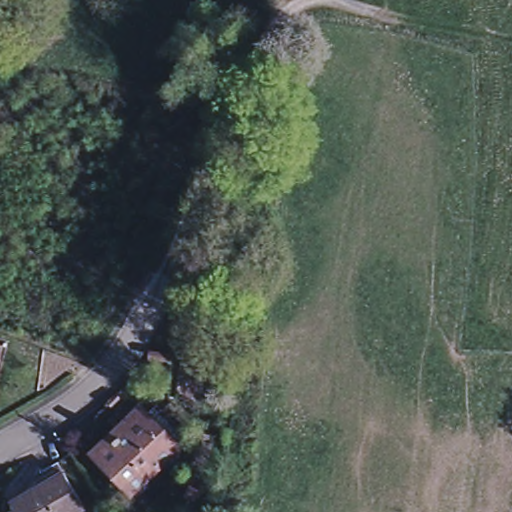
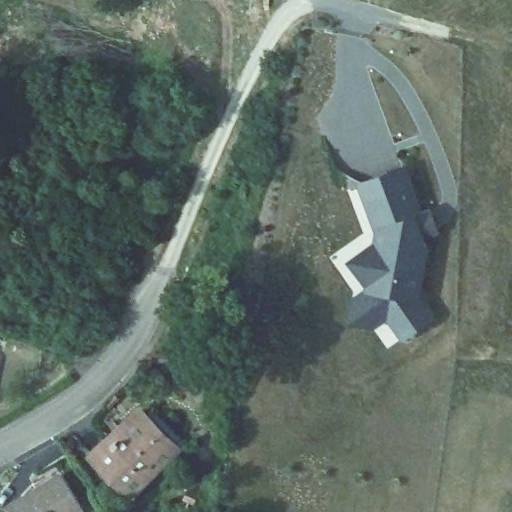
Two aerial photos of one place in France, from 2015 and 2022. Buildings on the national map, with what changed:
new [(422,210),(432,208),(440,233),(424,239),(428,249),(421,296),(435,318),(400,342),(387,320),(376,329),(349,324),(353,294),(365,288),(347,261),(374,241),(376,231),(358,182),(407,165),(422,210)]
unchanged [(91,457),(108,440),(135,414),(141,421),(156,408),(187,441),(173,454),(128,496),(91,457)]
unchanged [(35,489),(32,483),(57,468),(83,511),(81,512),(12,512),(8,505),(35,489)]

